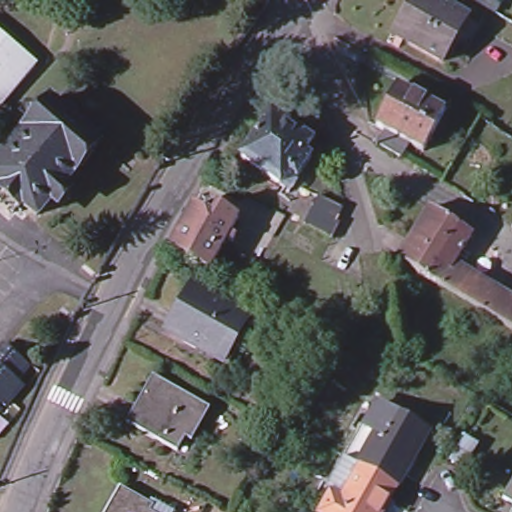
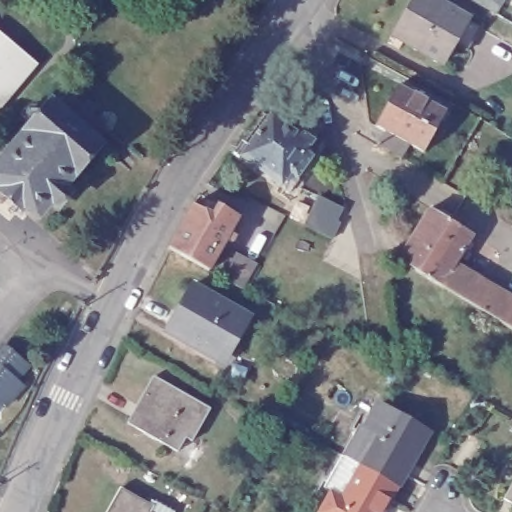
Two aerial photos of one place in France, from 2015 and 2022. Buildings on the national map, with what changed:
unchanged [(456,49),(443,41),(430,62),(394,41),(396,37),(386,31),(404,0),(425,0),(456,19),(470,26),(456,49)]
unchanged [(471,0),(502,0),(495,13),(471,0)]
unchanged [(0,102),(0,39),(31,64),(0,102)]
unchanged [(375,123),(396,84),(411,94),(413,90),(427,98),(426,100),(445,111),(422,150),(410,142),(401,155),(376,140),(383,128),(375,123)]
unchanged [(72,175),(69,172),(58,186),(65,193),(55,206),(46,200),(33,214),(18,203),(15,206),(0,194),(0,190),(2,187),(0,186),(0,160),(23,134),(21,131),(47,102),(97,145),(72,175)]
unchanged [(275,116),(293,129),(296,125),(317,140),(307,154),(315,160),(298,181),(290,176),(282,187),(244,160),(275,116)]
unchanged [(331,234),(306,222),(314,207),(323,192),(346,204),(337,220),(339,220),(331,234)]
unchanged [(212,202),(233,215),(227,225),(225,230),(230,232),(225,239),(221,236),(205,267),(165,247),(190,202),(206,212),(212,202)]
unchanged [(422,206),(466,232),(443,270),(450,273),(455,265),(467,272),(512,299),(512,329),(450,291),(393,256),(422,206)]
unchanged [(240,285),(214,272),(231,245),(255,260),(240,285)]
unchanged [(251,317),(233,350),(226,345),(218,359),(168,332),(193,285),(251,317)]
unchanged [(20,358),(7,373),(19,382),(0,405),(0,404),(0,345),(1,343),(20,358)]
unchanged [(207,411),(189,443),(182,440),(175,453),(124,425),(150,379),(207,411)]
unchanged [(392,482),(356,461),(375,428),(364,422),(376,401),(423,427),(392,482)]
unchanged [(375,512),(319,512),(315,510),(327,487),(338,492),(356,461),(392,482),(375,512)]
unchanged [(512,479),(512,507),(500,500),(512,479)]
unchanged [(153,503),(150,510),(155,512),(105,512),(120,485),(153,503)]

